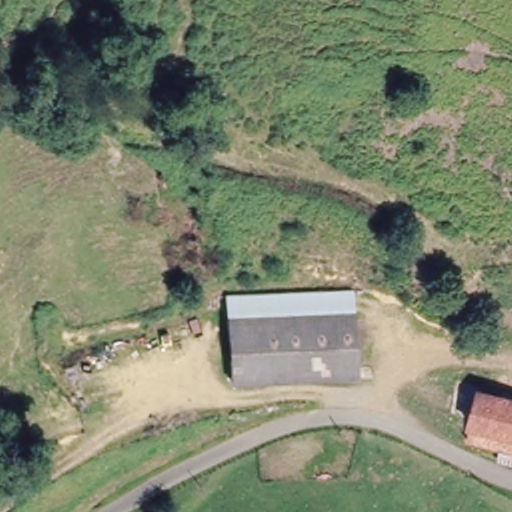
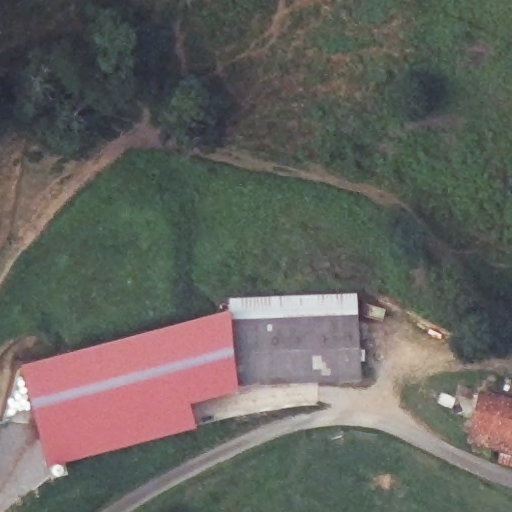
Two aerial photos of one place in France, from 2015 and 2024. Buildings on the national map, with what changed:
new [(22,365),(228,311),(229,298),(357,293),(360,379),(236,384),(238,391),(189,403),(195,428),(49,466),(22,365)]
demolished [(360,297),(362,382),(232,386),(230,302),(360,297)]
unchanged [(497,449),(499,437),(468,431),(474,385),(512,391),(512,452),(497,449)]

